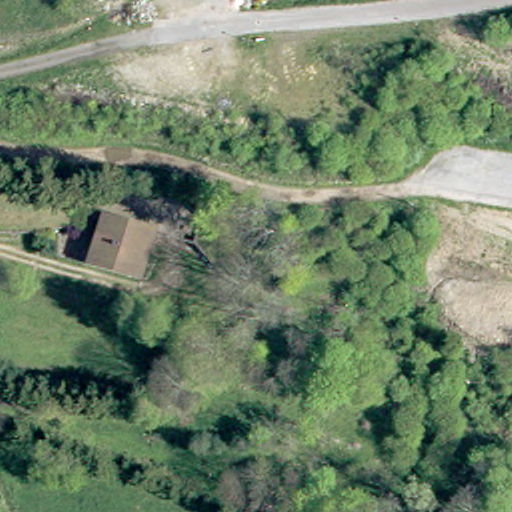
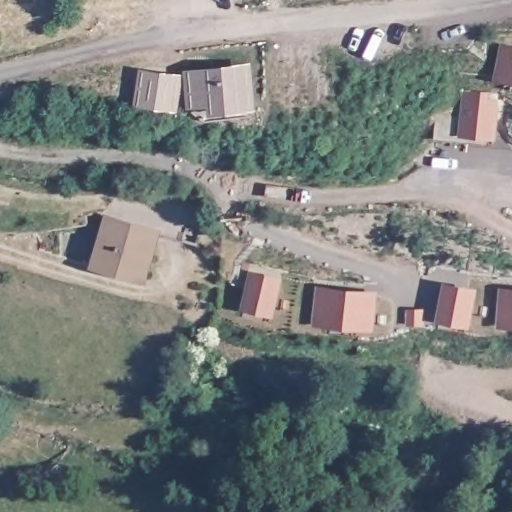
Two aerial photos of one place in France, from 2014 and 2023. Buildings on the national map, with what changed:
new [(512,46),(512,82),(494,79),(500,44),(512,46)]
new [(252,62),(257,107),(209,114),(207,105),(186,107),(183,69),(252,62)]
new [(177,110),(135,104),(140,67),(182,74),(177,110)]
new [(489,92),(488,100),(498,102),(494,141),(492,145),(434,141),(436,116),(458,117),(461,91),(489,92)]
unchanged [(173,240),(145,232),(152,204),(180,211),(173,240)]
unchanged [(86,260),(98,217),(145,232),(133,272),(86,260)]
new [(250,271),(282,278),(275,315),(241,307),(250,271)]
new [(471,327),(436,321),(443,282),(478,288),(471,327)]
new [(373,331),(312,326),(315,286),(376,290),(373,331)]
new [(497,327),(498,288),(512,289),(512,327),(497,327)]

